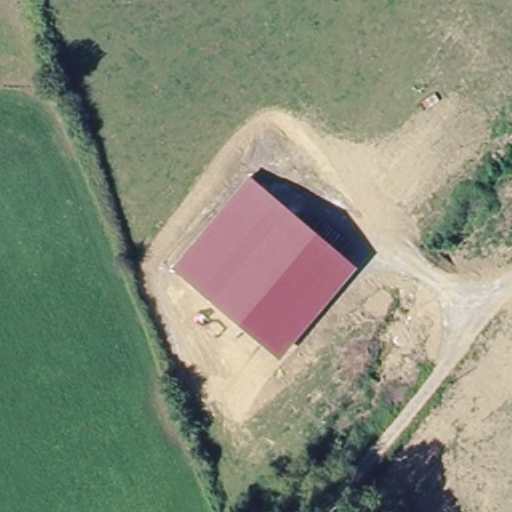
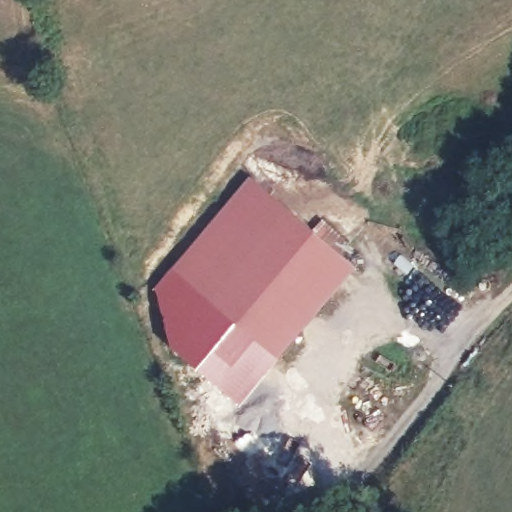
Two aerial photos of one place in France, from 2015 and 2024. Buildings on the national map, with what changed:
unchanged [(357,268),(278,360),(170,269),(250,177),(357,268)]
new [(240,407),(172,349),(156,290),(170,269),(278,360),(240,407)]

